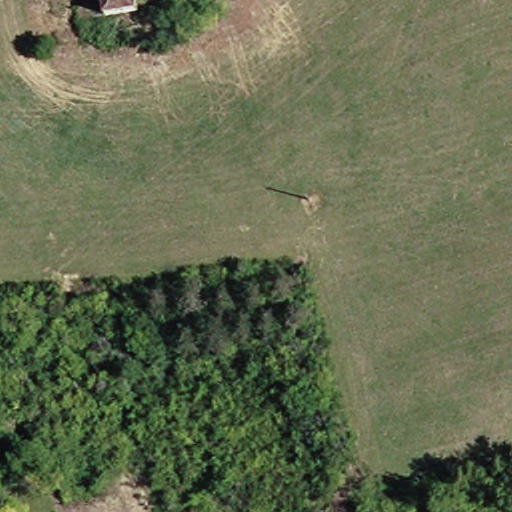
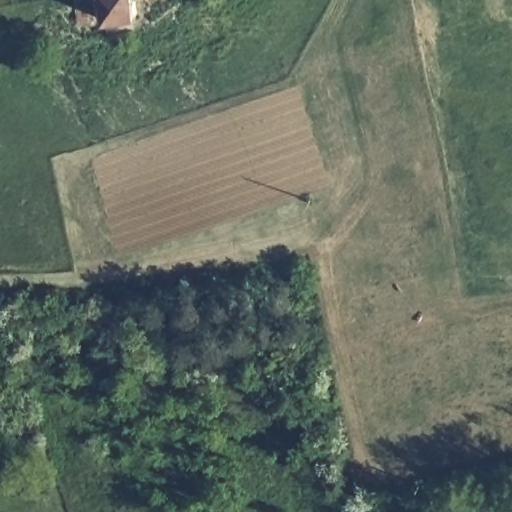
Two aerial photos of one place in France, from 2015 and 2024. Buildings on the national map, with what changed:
unchanged [(110,20),(81,26),(76,0),(140,0),(142,12),(110,20)]

